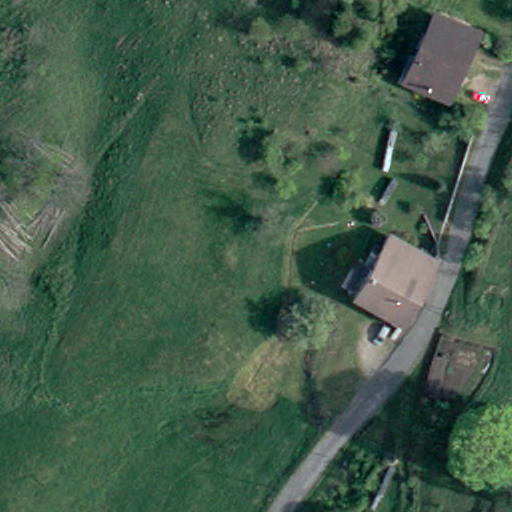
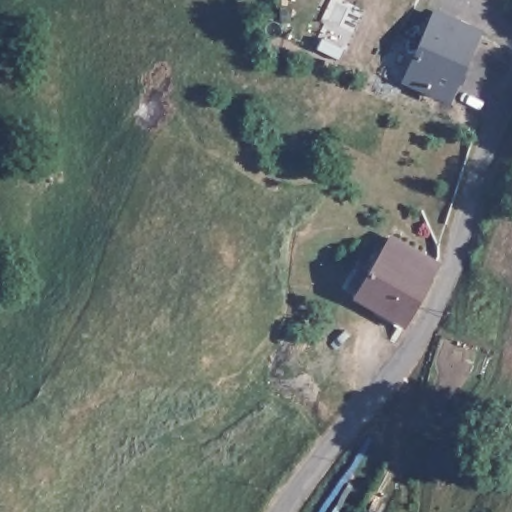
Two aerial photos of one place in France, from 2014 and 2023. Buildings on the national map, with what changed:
unchanged [(460,85),(454,82),(447,100),(403,80),(412,61),(432,17),(475,36),(458,74),(463,76),(460,85)]
unchanged [(376,209),(370,206),(375,199),(380,202),(376,209)]
unchanged [(385,240),(433,267),(398,327),(350,299),(385,240)]
unchanged [(363,431),(381,442),(361,474),(343,463),(363,431)]

